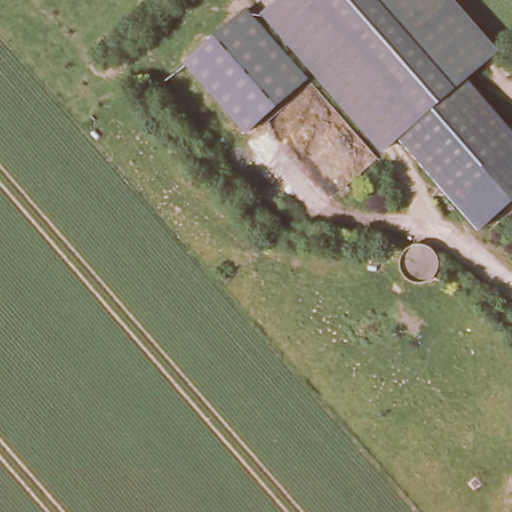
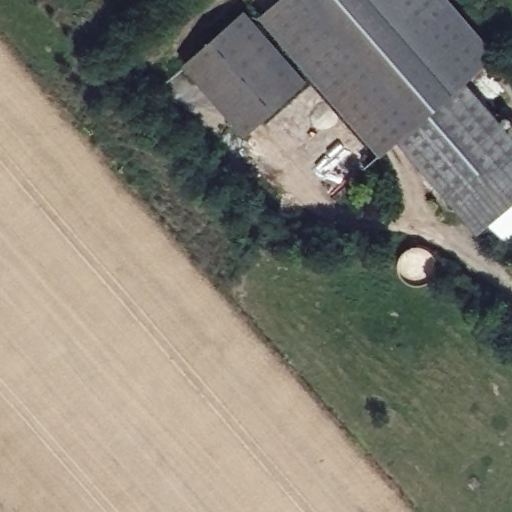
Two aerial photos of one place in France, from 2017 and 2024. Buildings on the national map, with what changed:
unchanged [(449,0),(496,55),(467,80),(512,133),(512,201),(478,234),(396,142),(380,156),(257,16),(275,0),(449,0)]
unchanged [(242,9),(306,81),(243,136),(180,67),(242,9)]

